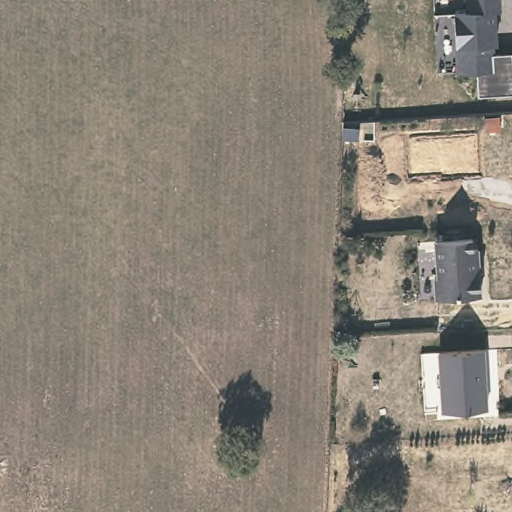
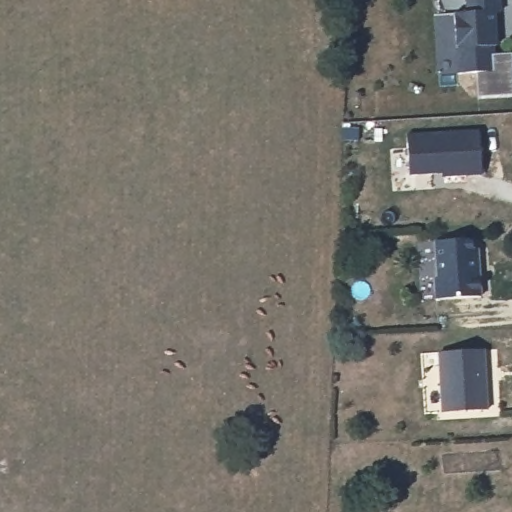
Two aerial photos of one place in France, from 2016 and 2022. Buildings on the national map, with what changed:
unchanged [(500,13),(495,14),(496,53),(512,52),(512,98),(475,98),(473,74),(455,76),(453,12),(466,10),(466,0),(500,0),(500,13)]
new [(480,131),(483,175),(443,177),(443,174),(410,176),(407,135),(480,131)]
unchanged [(471,239),(472,249),(477,249),(480,297),(437,300),(435,278),(440,278),(437,242),(471,239)]
unchanged [(485,350),(488,410),(443,413),(440,353),(485,350)]

